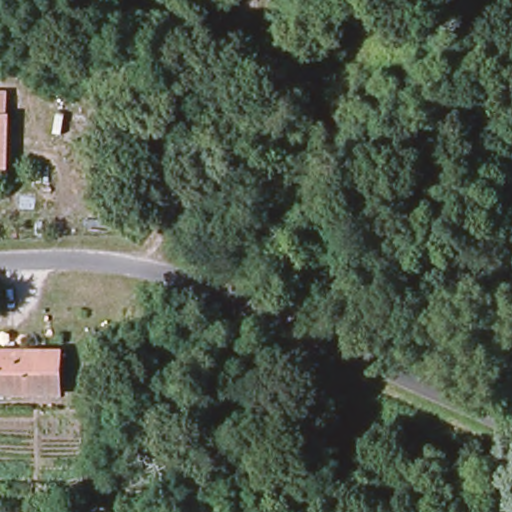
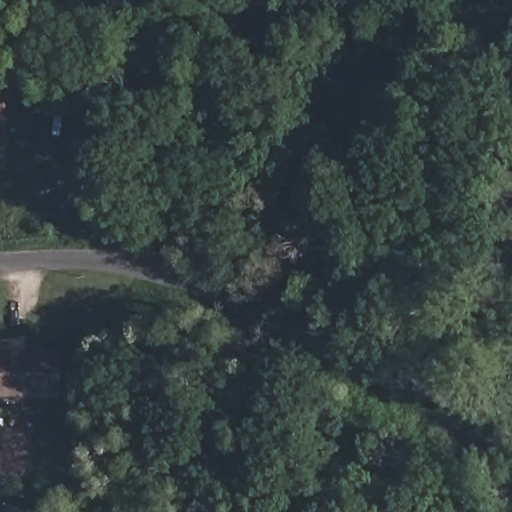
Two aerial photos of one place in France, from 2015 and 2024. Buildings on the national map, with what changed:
unchanged [(10,122),(0,122),(0,91),(10,91),(10,122)]
unchanged [(0,122),(10,122),(9,152),(0,152),(0,122)]
unchanged [(9,170),(0,170),(0,152),(9,152),(9,170)]
unchanged [(60,388),(0,388),(0,351),(61,352),(60,388)]

